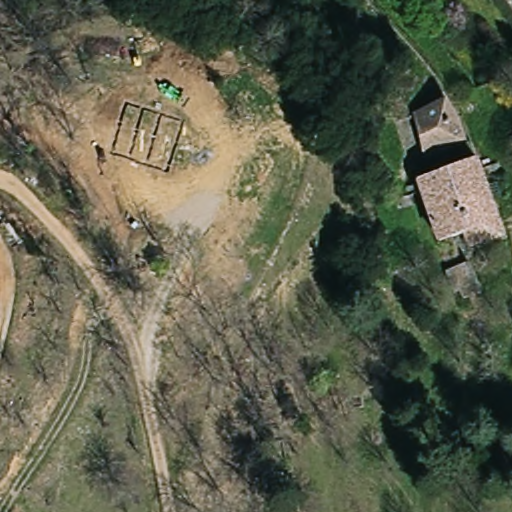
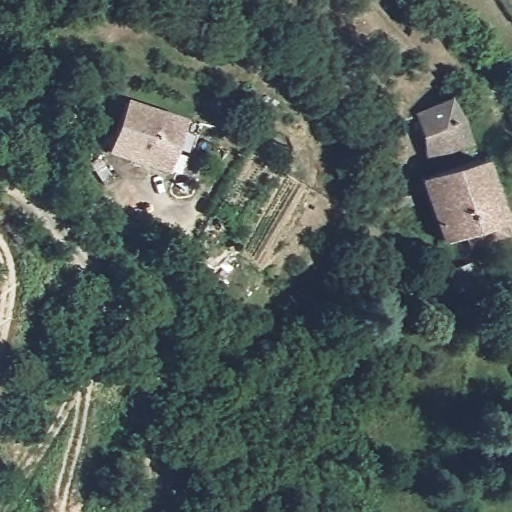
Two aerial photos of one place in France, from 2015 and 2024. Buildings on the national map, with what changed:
unchanged [(446,151),(439,153),(434,155),(416,115),(456,96),(475,140),(446,151)]
new [(126,98),(186,118),(168,173),(107,154),(126,98)]
unchanged [(443,171),(463,166),(480,162),(482,170),(499,239),(469,248),(464,231),(441,238),(424,175),(443,171)]
unchanged [(470,265),(479,297),(457,303),(456,298),(451,294),(449,283),(446,269),(470,265)]

